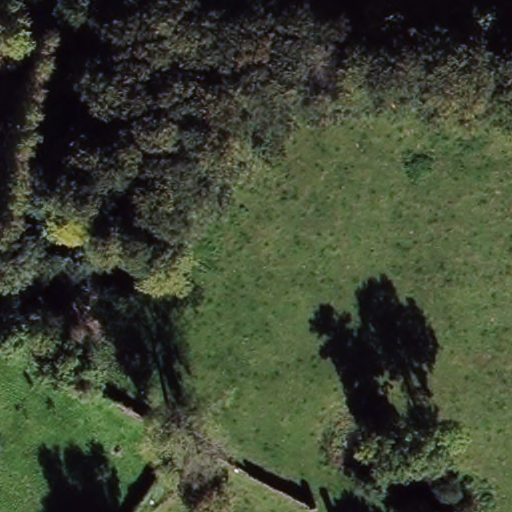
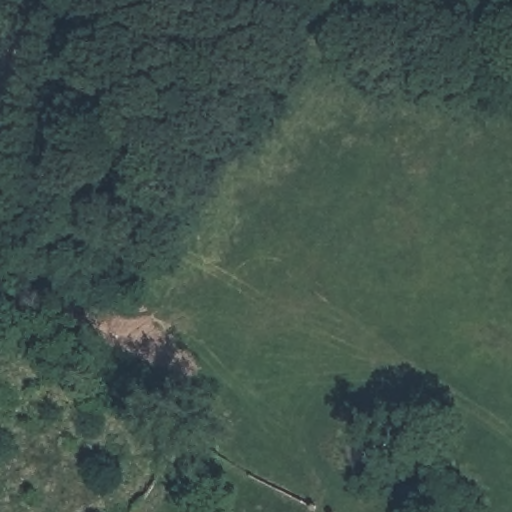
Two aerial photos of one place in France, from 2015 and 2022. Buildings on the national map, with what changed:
unchanged [(32,323),(57,341),(46,363),(3,340),(32,323)]

